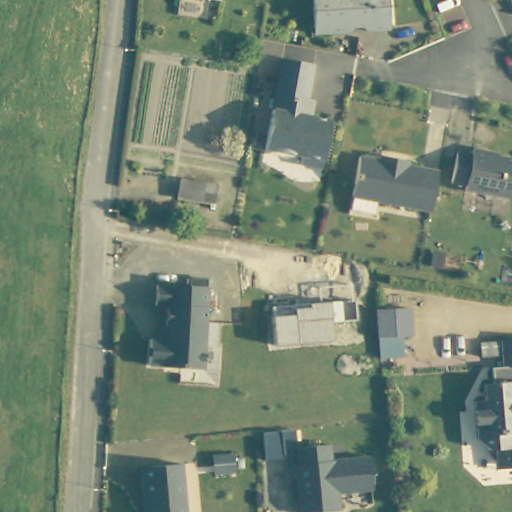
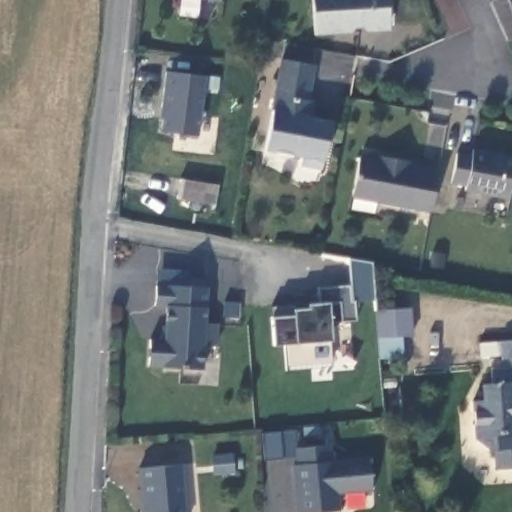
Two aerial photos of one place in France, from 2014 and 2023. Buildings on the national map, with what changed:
unchanged [(332,26),(332,31),(317,31),(313,31),(312,0),(387,0),(387,25),(332,26)]
unchanged [(263,146),(281,56),(312,62),(303,114),(297,153),(263,146)]
new [(199,135),(160,131),(167,71),(206,76),(199,135)]
unchanged [(320,165),(296,160),(297,153),(303,114),(329,118),(320,165)]
unchanged [(452,181),(457,153),(472,155),(473,149),(512,156),(512,185),(510,196),(466,187),(467,183),(452,181)]
unchanged [(356,155),(375,159),(376,154),(402,159),(402,164),(432,170),(426,208),(348,194),(356,155)]
unchanged [(215,203),(202,202),(177,199),(180,180),(207,183),(217,184),(215,203)]
unchanged [(270,307),(317,303),(317,286),(351,283),(355,320),(330,323),(331,339),(275,344),(270,307)]
unchanged [(150,366),(151,339),(162,339),(164,305),(152,304),(152,284),(207,287),(203,368),(150,366)]
unchanged [(372,310),(385,309),(405,308),(407,335),(397,336),(398,357),(389,357),(377,358),(372,310)]
unchanged [(501,460),(500,450),(492,451),(482,444),(478,402),(488,401),(487,385),(497,384),(496,369),(507,368),(506,344),(512,343),(512,466),(510,466),(501,460)]
unchanged [(291,445),(325,442),(326,459),(365,455),(367,487),(332,490),(335,508),(293,512),(288,462),(292,462),(291,445)]
unchanged [(227,451),(228,469),(210,471),(209,453),(227,451)]
unchanged [(176,461),(181,512),(141,512),(140,498),(137,499),(134,465),(176,461)]

